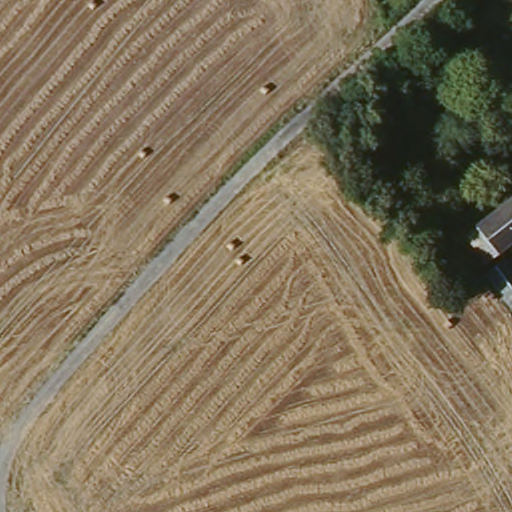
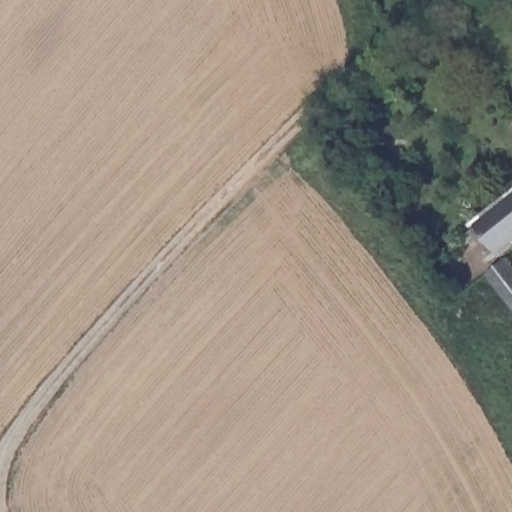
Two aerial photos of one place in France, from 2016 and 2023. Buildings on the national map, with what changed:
unchanged [(461,236),(512,200),(512,243),(483,263),(461,236)]
unchanged [(512,261),(512,305),(489,277),(512,261)]

